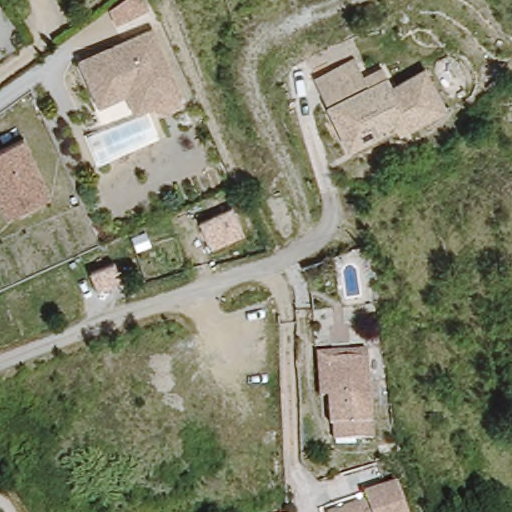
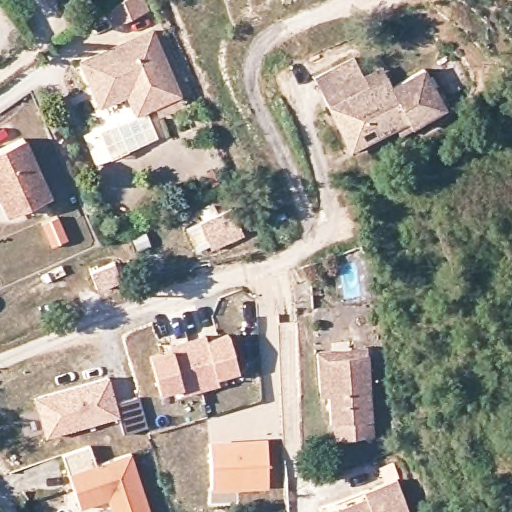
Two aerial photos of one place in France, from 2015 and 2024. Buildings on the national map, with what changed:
unchanged [(132,84),(110,93),(106,85),(89,91),(78,66),(150,34),(181,108),(158,117),(154,107),(144,111),(132,84)]
unchanged [(388,130),(361,144),(344,152),(325,112),(310,80),(351,60),(360,80),(378,71),(384,84),(386,90),(421,72),(441,114),(405,131),(391,137),(388,130)]
unchanged [(42,201),(8,215),(1,218),(0,214),(0,152),(20,144),(42,201)]
unchanged [(193,225),(226,212),(237,240),(205,254),(193,225)]
unchanged [(80,271),(102,265),(110,297),(90,303),(81,275),(80,271)]
new [(216,379),(220,385),(183,395),(181,386),(158,393),(149,355),(171,350),(170,346),(205,336),(207,341),(229,335),(239,374),(216,379)]
unchanged [(337,443),(336,432),(330,433),(327,405),(319,406),(316,406),(311,355),(315,355),(323,353),(360,349),(360,357),(370,440),(337,443)]
new [(125,436),(120,418),(46,438),(35,399),(108,379),(115,405),(140,398),(147,428),(125,436)]
new [(268,440),(269,490),(238,491),(210,492),(209,442),(268,440)]
new [(96,464),(131,453),(151,512),(112,512),(107,500),(79,507),(68,473),(61,455),(90,445),(96,464)]
unchanged [(325,508),(367,495),(365,486),(399,475),(410,512),(327,512),(325,508)]

